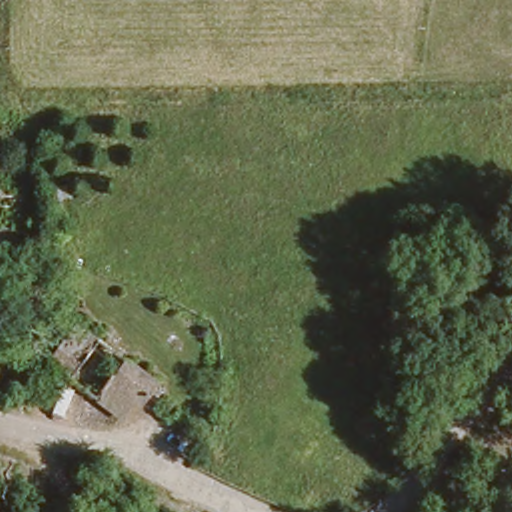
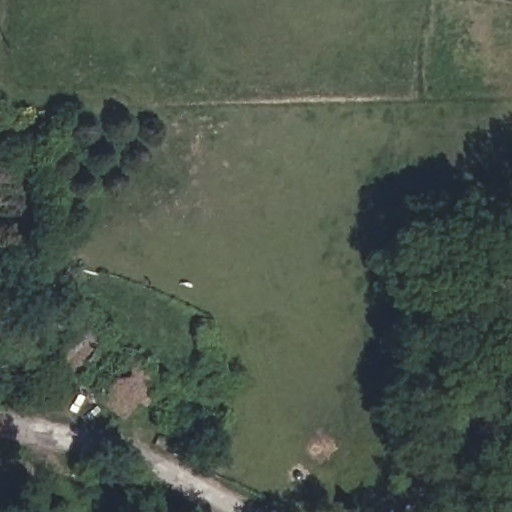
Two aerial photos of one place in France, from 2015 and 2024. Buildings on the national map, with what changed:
unchanged [(10,324),(0,327),(0,293),(10,324)]
unchanged [(70,376),(48,360),(71,320),(97,338),(70,376)]
unchanged [(144,406),(136,402),(123,418),(94,397),(124,352),(160,379),(144,406)]

